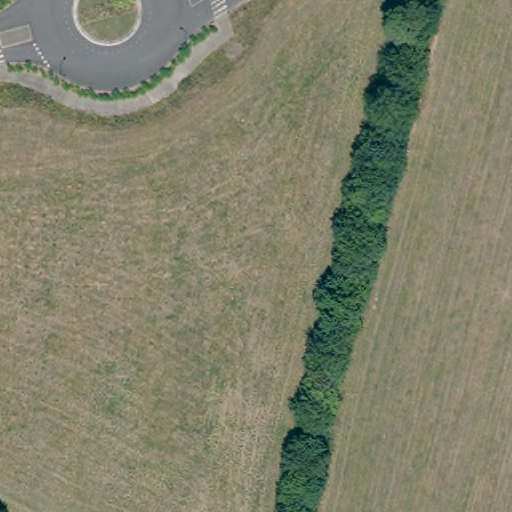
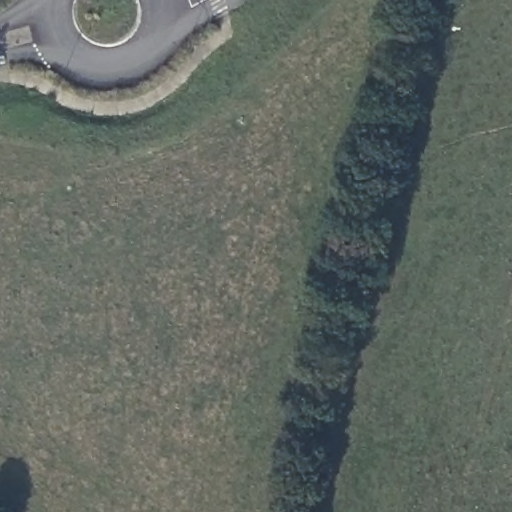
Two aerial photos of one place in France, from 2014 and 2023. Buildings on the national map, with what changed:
[]

